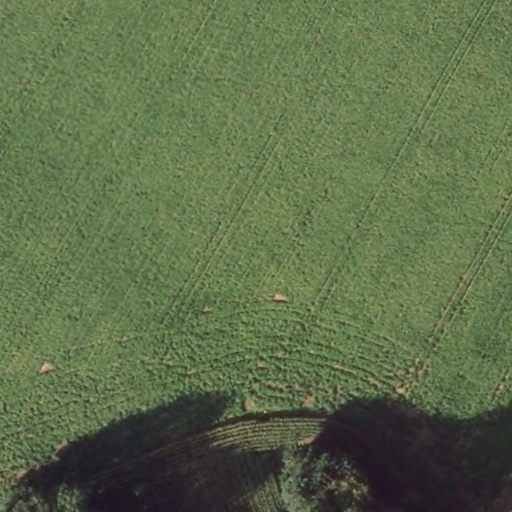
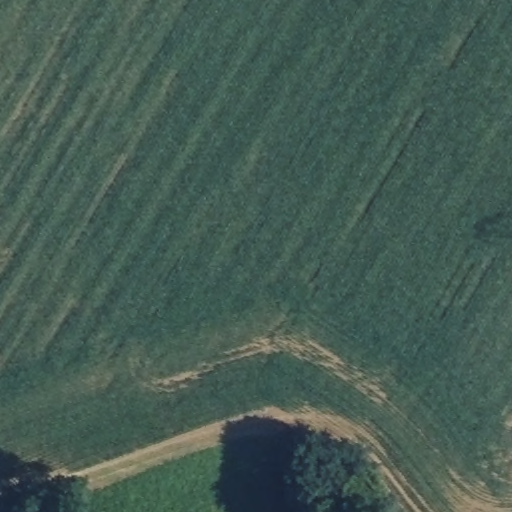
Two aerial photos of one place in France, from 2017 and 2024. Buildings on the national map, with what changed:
[]

